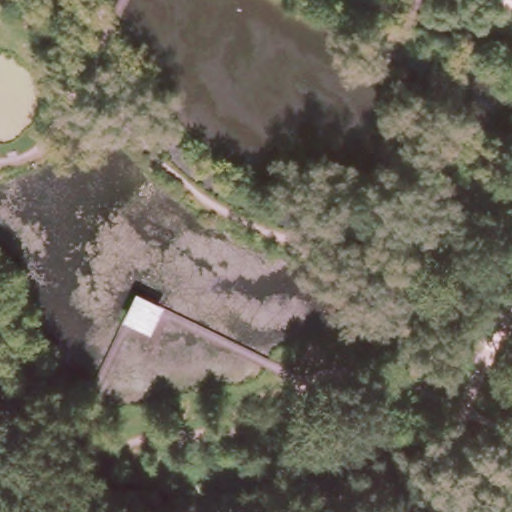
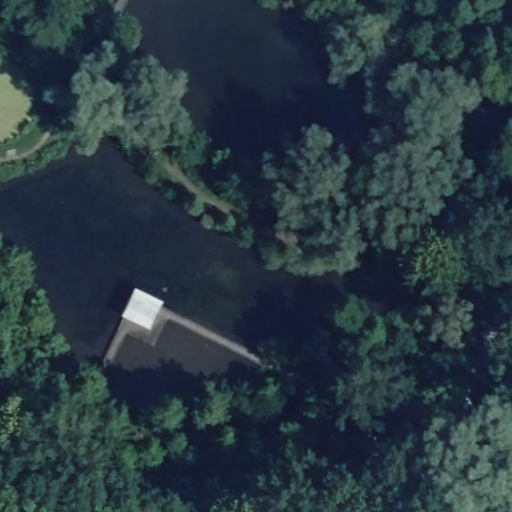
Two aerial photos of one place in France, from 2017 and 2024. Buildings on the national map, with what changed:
unchanged [(147,328),(122,314),(133,289),(157,301),(147,328)]

